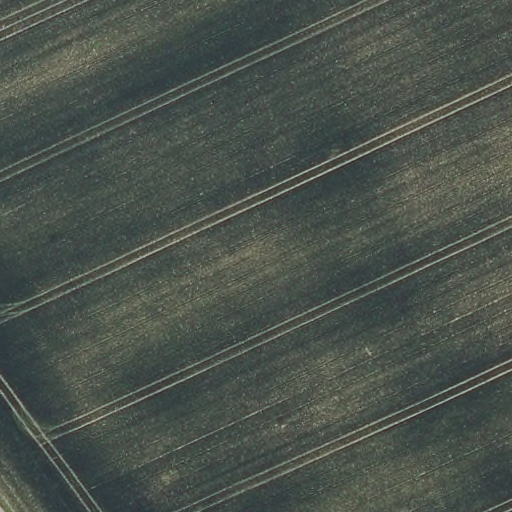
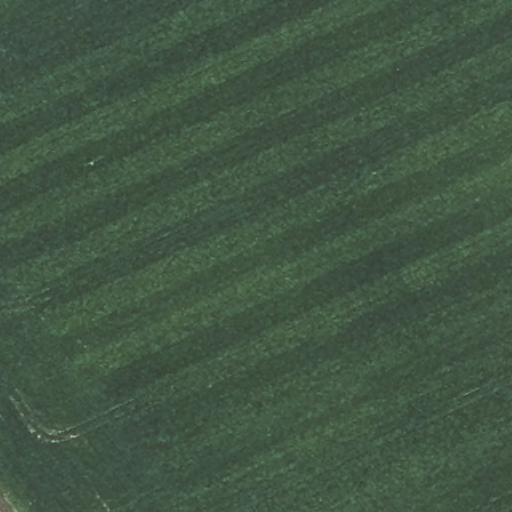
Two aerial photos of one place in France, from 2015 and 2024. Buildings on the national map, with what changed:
[]

